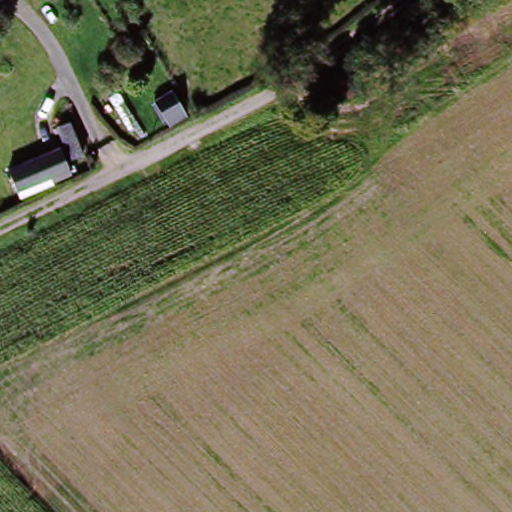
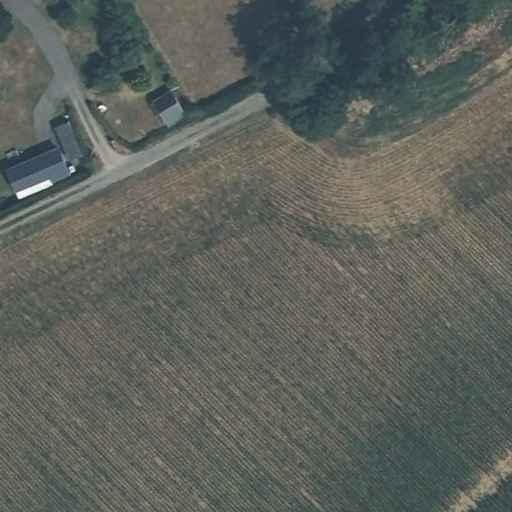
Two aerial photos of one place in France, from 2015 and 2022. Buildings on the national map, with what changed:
unchanged [(71,176),(15,201),(4,177),(60,151),(71,176)]

